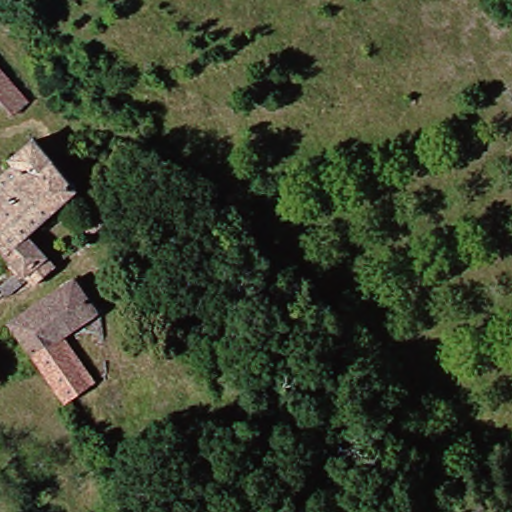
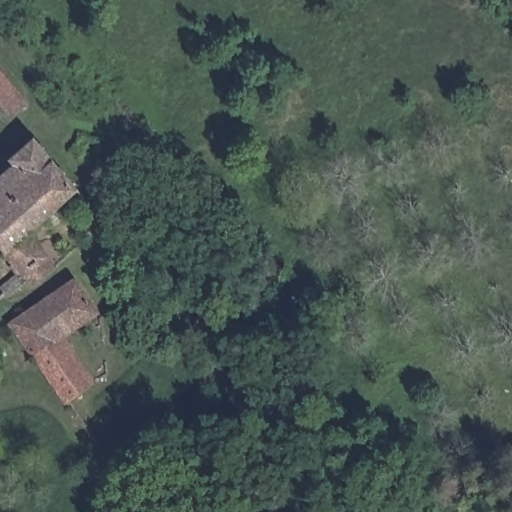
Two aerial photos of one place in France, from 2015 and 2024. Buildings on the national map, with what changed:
unchanged [(7,121),(0,113),(0,80),(24,105),(7,121)]
unchanged [(4,162),(30,140),(76,195),(29,236),(50,265),(25,285),(0,253),(0,177),(10,168),(4,162)]
unchanged [(78,397),(64,408),(7,327),(71,282),(95,318),(60,345),(90,388),(78,397)]

